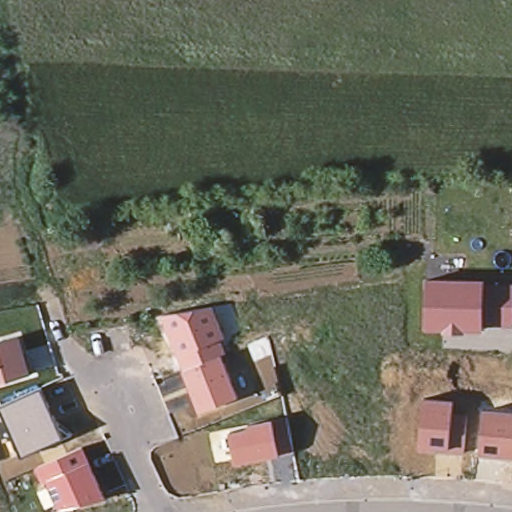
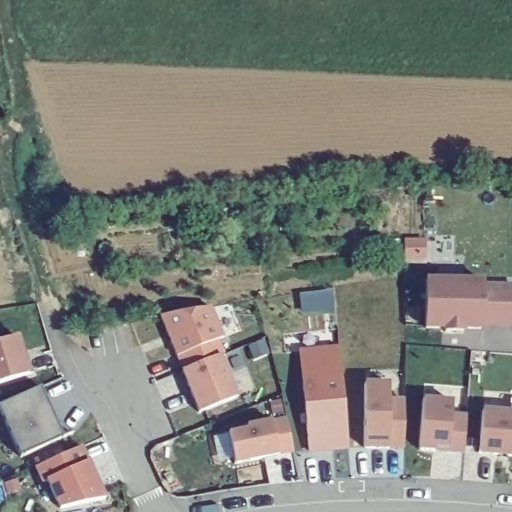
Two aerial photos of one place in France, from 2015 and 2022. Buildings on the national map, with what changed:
unchanged [(484,324),(484,331),(464,331),(464,334),(443,335),(443,331),(424,330),(424,280),(512,283),(512,323),(484,324)]
unchanged [(213,305),(225,339),(222,340),(227,354),(223,356),(238,396),(199,414),(161,315),(213,305)]
unchanged [(33,375),(0,385),(0,342),(22,335),(33,375)]
new [(291,352),(330,351),(339,451),(303,454),(291,352)]
new [(387,450),(365,450),(365,382),(390,382),(389,400),(405,400),(404,450),(387,450)]
unchanged [(20,457),(0,411),(0,404),(42,386),(65,437),(20,457)]
unchanged [(455,400),(455,410),(468,411),(465,455),(420,452),(424,396),(455,400)]
unchanged [(512,410),(512,459),(479,455),(484,407),(512,410)]
unchanged [(294,456),(235,465),(229,431),(248,427),(248,425),(287,416),(294,456)]
unchanged [(108,497),(59,510),(45,483),(42,485),(35,468),(83,445),(108,497)]

